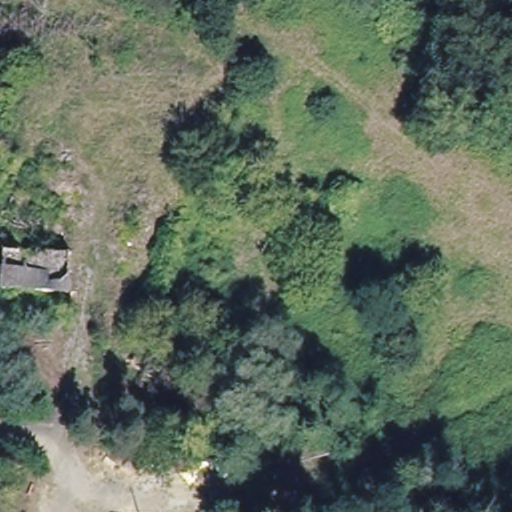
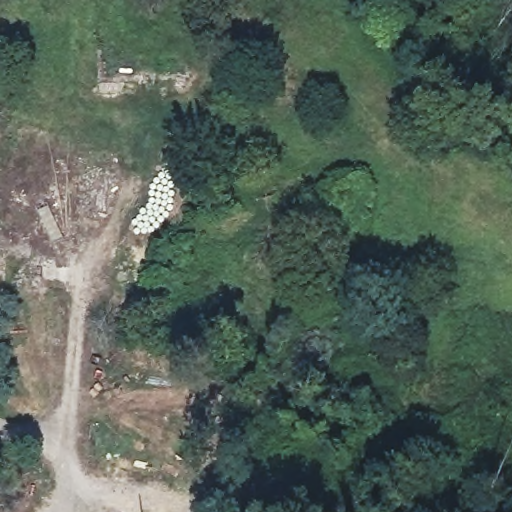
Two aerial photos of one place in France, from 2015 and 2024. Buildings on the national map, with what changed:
demolished [(71,253),(71,293),(1,293),(3,251),(71,253)]

